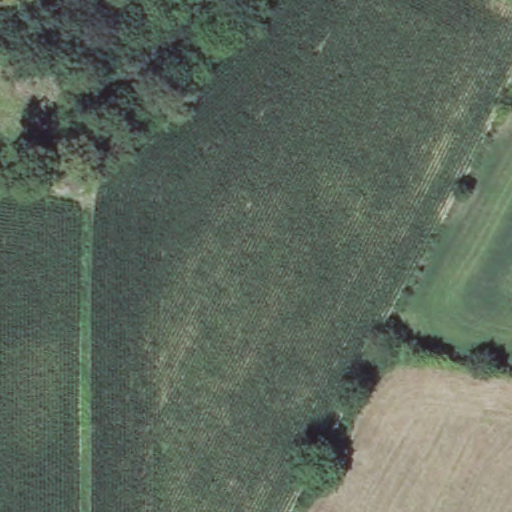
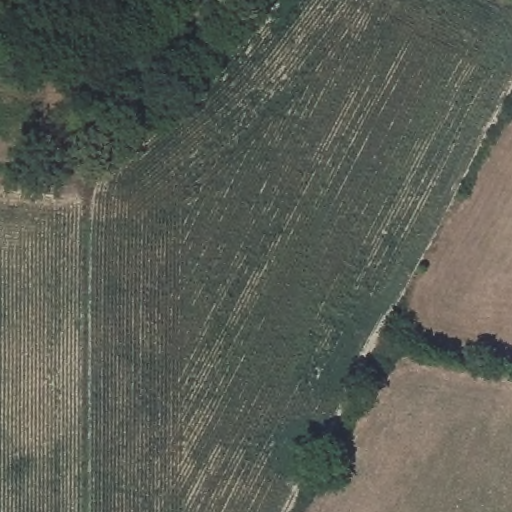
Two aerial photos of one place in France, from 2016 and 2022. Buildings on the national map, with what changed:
[]

